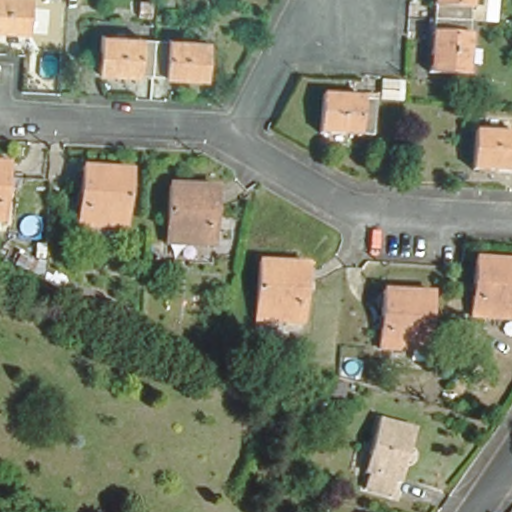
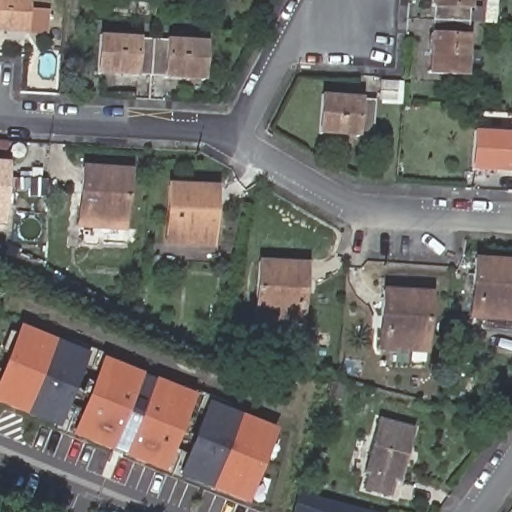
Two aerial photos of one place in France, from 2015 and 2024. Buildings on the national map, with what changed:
unchanged [(26,34),(0,34),(0,0),(28,0),(26,34)]
unchanged [(463,78),(427,77),(430,0),(467,0),(463,78)]
unchanged [(503,25),(473,24),(473,0),(504,0),(503,25)]
unchanged [(206,34),(210,34),(208,74),(190,73),(158,71),(104,67),(106,29),(120,29),(206,34)]
unchanged [(104,67),(158,71),(158,90),(103,88),(104,67)]
unchanged [(365,99),(363,136),(316,134),(317,97),(365,99)]
unchanged [(512,134),(512,174),(474,172),(478,132),(512,134)]
unchanged [(6,217),(0,217),(0,161),(8,161),(6,217)]
unchanged [(99,221),(79,220),(81,165),(129,167),(128,213),(128,222),(125,222),(120,222),(119,235),(119,242),(116,242),(99,242),(99,221)]
unchanged [(219,191),(217,244),(169,241),(169,189),(219,191)]
unchanged [(512,262),(512,316),(472,313),(476,259),(512,262)]
unchanged [(304,265),(301,324),(260,322),(261,264),(304,265)]
unchanged [(143,316),(135,332),(50,292),(57,276),(143,316)]
unchanged [(430,292),(427,350),(380,347),(382,290),(430,292)]
new [(254,500),(0,398),(0,385),(26,321),(285,425),(254,500)]
unchanged [(353,362),(344,402),(328,398),(337,358),(353,362)]
unchanged [(416,429),(399,482),(395,481),(390,496),(365,488),(369,472),(364,470),(381,418),(416,429)]
new [(295,512),(305,488),(388,512),(295,512)]

